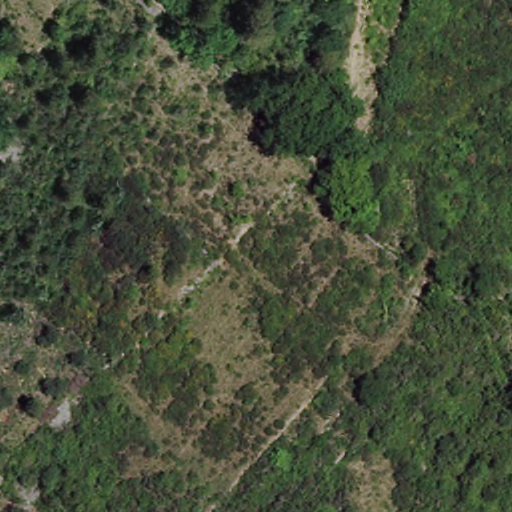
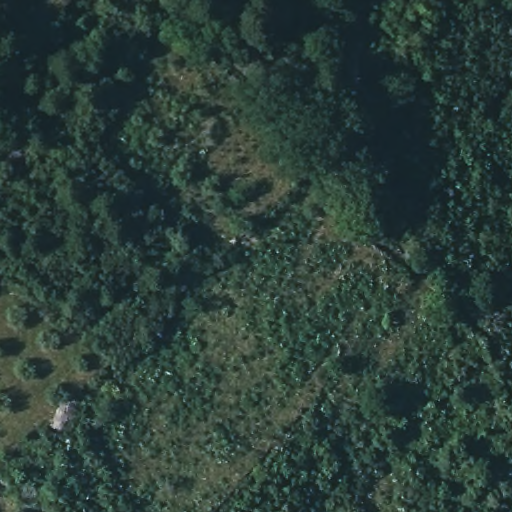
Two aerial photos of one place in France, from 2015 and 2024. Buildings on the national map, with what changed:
unchanged [(22,138),(21,154),(13,157),(2,171),(0,170),(0,137),(22,138)]
unchanged [(435,470),(441,479),(421,490),(410,475),(427,465),(435,470)]

